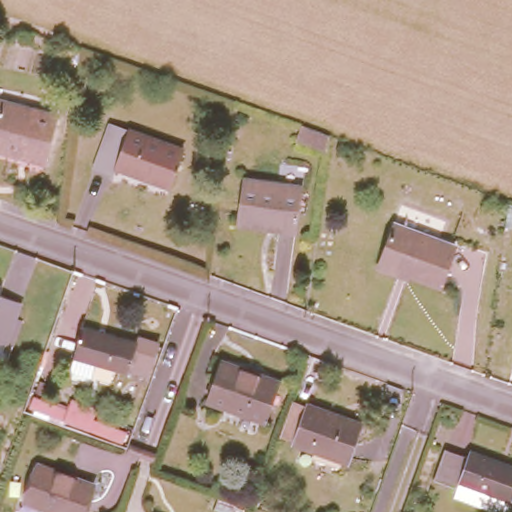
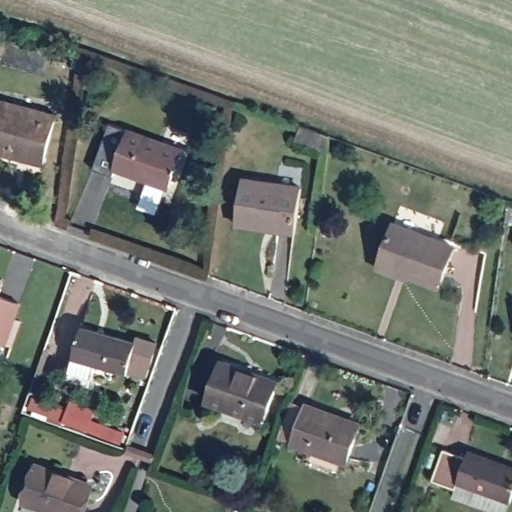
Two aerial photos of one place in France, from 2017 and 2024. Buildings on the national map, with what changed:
unchanged [(39,164),(0,154),(0,102),(52,116),(39,164)]
unchanged [(327,153),(295,142),(300,128),(328,138),(327,153)]
unchanged [(122,139),(124,131),(177,150),(163,189),(110,170),(108,178),(88,170),(102,132),(122,139)]
unchanged [(297,188),(290,233),(230,226),(237,180),(297,188)]
unchanged [(377,270),(379,265),(393,225),(454,248),(440,287),(410,276),(408,281),(377,270)]
unchanged [(123,365),(122,368),(90,359),(82,383),(61,377),(77,323),(132,339),(133,333),(152,338),(145,365),(143,371),(123,365)]
unchanged [(272,382),(258,423),(202,403),(216,362),(272,382)]
unchanged [(68,411),(65,421),(30,408),(33,398),(68,411)]
unchanged [(360,425),(347,463),(292,444),(293,442),(280,436),(292,402),(306,407),(307,405),(360,425)]
unchanged [(461,459),(463,452),(512,470),(512,487),(506,503),(452,483),(450,490),(427,481),(439,450),(461,459)]
unchanged [(83,512),(52,512),(25,502),(37,466),(92,487),(83,512)]

